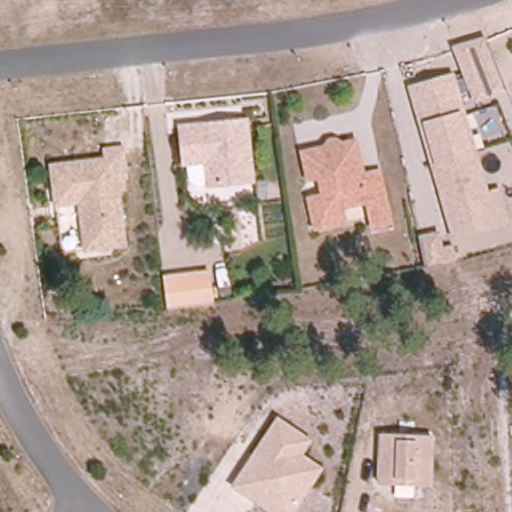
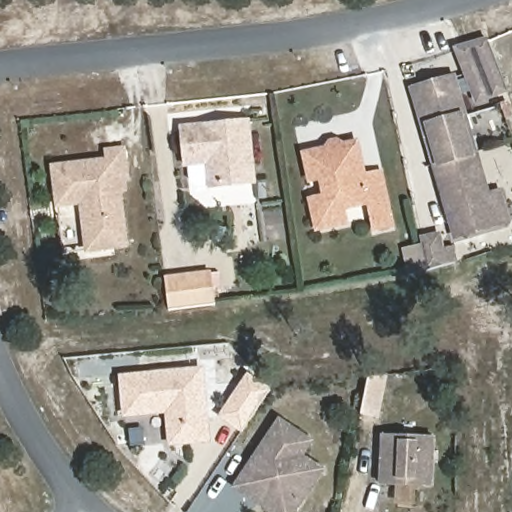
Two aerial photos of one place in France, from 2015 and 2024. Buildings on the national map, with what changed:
unchanged [(473,105),(452,50),(486,36),(508,91),(473,105)]
unchanged [(509,221),(453,239),(409,86),(453,73),(488,190),(501,186),(509,221)]
unchanged [(207,189),(207,187),(187,190),(184,167),(183,167),(179,130),(245,122),(252,185),(207,189)]
unchanged [(370,235),(362,204),(347,207),(350,221),(314,229),(309,198),(327,194),(324,179),(305,182),(300,151),(319,148),(331,134),(343,142),(358,139),(364,170),(378,166),(393,229),(370,235)]
unchanged [(105,161),(104,151),(122,149),(126,179),(116,180),(124,247),(85,251),(81,212),(88,211),(87,202),(57,205),(52,167),(105,161)]
unchanged [(438,230),(440,246),(453,245),(457,262),(423,270),(415,236),(438,230)]
unchanged [(163,279),(198,275),(208,273),(211,290),(212,305),(167,311),(163,279)]
new [(118,376),(203,367),(211,444),(169,447),(165,415),(124,419),(118,376)]
new [(371,377),(389,374),(380,423),(363,420),(371,377)]
new [(246,375),(270,390),(241,433),(218,417),(246,375)]
unchanged [(277,416),(314,438),(303,454),(325,468),(295,512),(268,512),(229,487),(277,416)]
unchanged [(433,487),(374,485),(377,431),(436,433),(433,487)]

